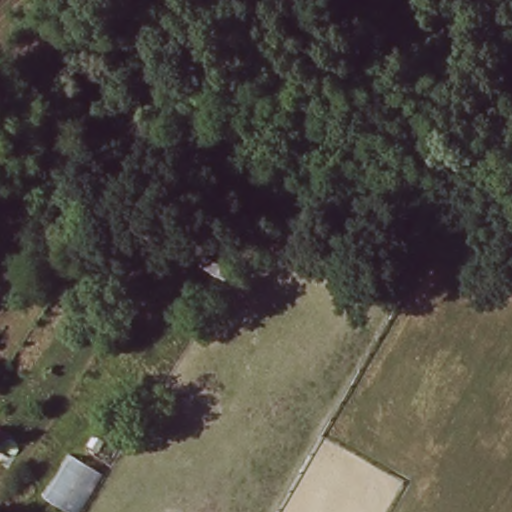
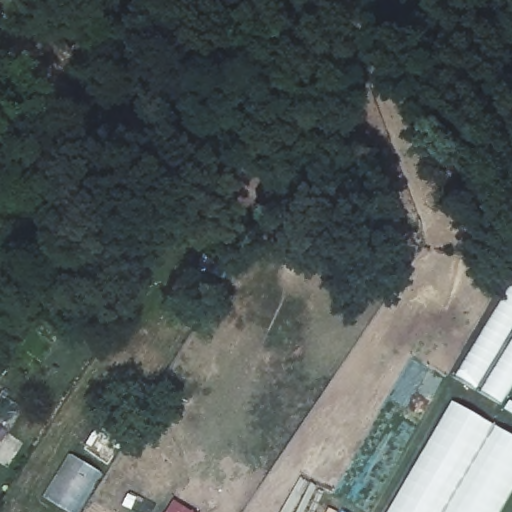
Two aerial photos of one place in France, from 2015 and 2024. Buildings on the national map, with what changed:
new [(512,280),(512,382),(498,406),(451,379),(512,280)]
new [(512,435),(512,492),(500,512),(385,512),(450,399),(512,435)]
unchanged [(90,512),(65,512),(49,503),(78,458),(108,479),(90,512)]

